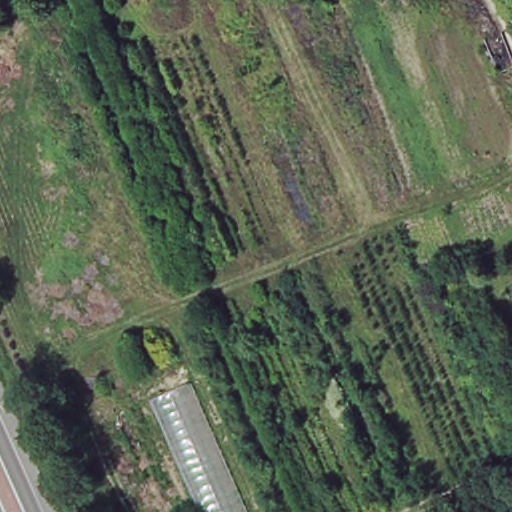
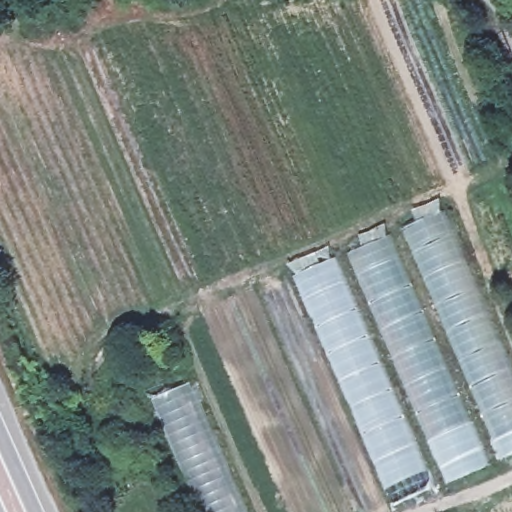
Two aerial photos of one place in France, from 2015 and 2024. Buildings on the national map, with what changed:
new [(512,368),(512,451),(395,506),(295,276),(444,211),(512,368)]
new [(190,383),(244,512),(201,512),(150,400),(190,383)]

